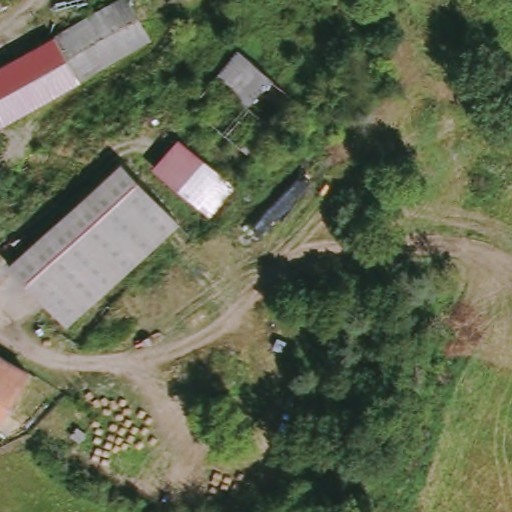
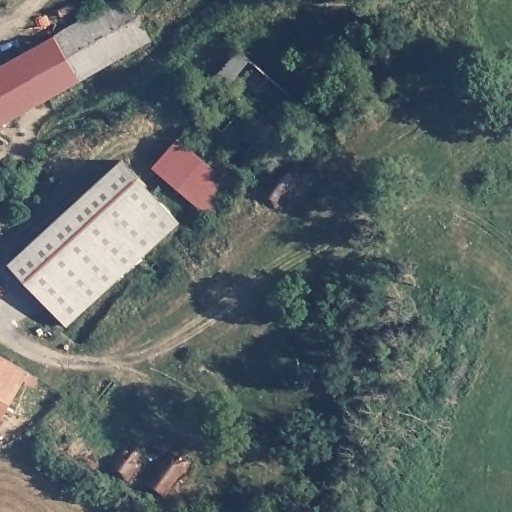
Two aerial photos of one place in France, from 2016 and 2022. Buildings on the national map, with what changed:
unchanged [(50,39),(120,0),(127,0),(150,44),(78,85),(0,129),(0,67),(50,39)]
unchanged [(274,82),(247,109),(211,80),(237,51),(274,82)]
unchanged [(231,188),(206,216),(150,170),(177,140),(231,188)]
unchanged [(180,230),(65,331),(9,268),(124,166),(180,230)]
unchanged [(32,374),(14,404),(3,422),(0,428),(0,354),(32,374)]

